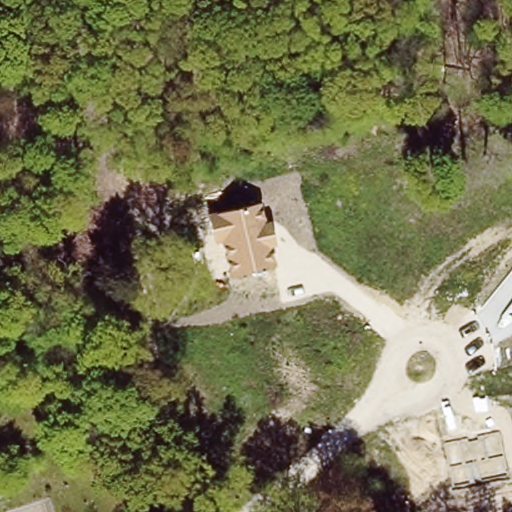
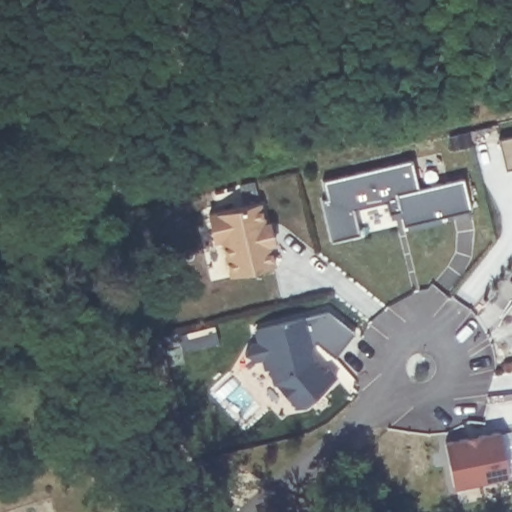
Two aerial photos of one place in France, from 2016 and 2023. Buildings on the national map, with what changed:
new [(499,139),(512,136),(512,168),(506,170),(499,139)]
new [(325,200),(322,182),(410,162),(417,191),(462,181),(469,212),(402,228),(399,213),(387,216),(385,204),(353,211),(355,236),(327,242),(318,201),(325,200)]
unchanged [(261,202),(265,221),(268,220),(275,245),(270,246),(275,267),(230,277),(221,242),(215,243),(209,214),(261,202)]
new [(335,357),(316,342),(312,349),(315,361),(325,371),(330,367),(338,376),(305,405),(296,408),(272,382),(269,368),(264,370),(262,360),(256,361),(244,354),(252,342),(257,342),(255,336),(257,327),(328,311),(354,333),(335,357)]
unchanged [(453,487),(444,442),(500,430),(510,476),(453,487)]

